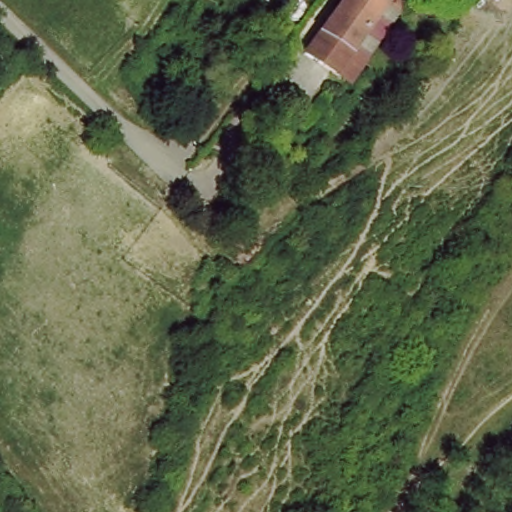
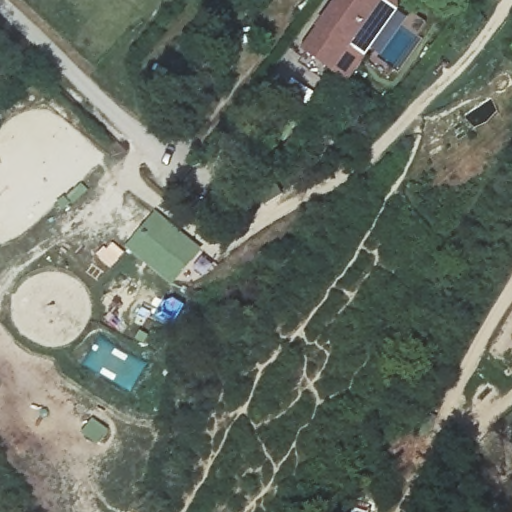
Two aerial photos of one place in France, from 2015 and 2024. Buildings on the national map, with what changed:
unchanged [(393,0),(359,40),(333,15),(346,0),(393,0)]
new [(155,209),(205,250),(171,287),(123,246),(155,209)]

